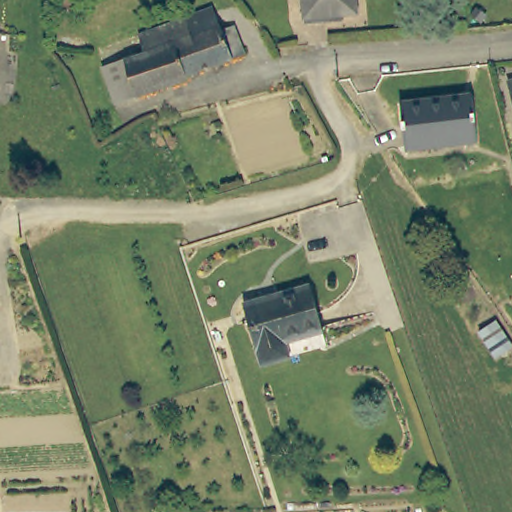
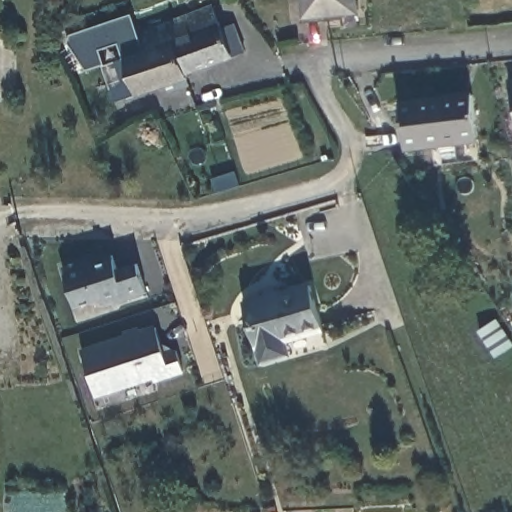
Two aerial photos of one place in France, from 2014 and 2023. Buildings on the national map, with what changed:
unchanged [(302,0),(354,0),(355,14),(303,17),(302,0)]
unchanged [(143,49),(138,30),(215,2),(222,26),(232,24),(241,54),(186,71),(187,78),(109,100),(100,62),(143,49)]
unchanged [(143,49),(100,62),(101,66),(86,70),(67,44),(71,35),(132,15),(138,30),(143,49)]
unchanged [(508,81),(506,76),(512,74),(512,96),(511,92),(508,81)]
unchanged [(434,96),(435,102),(469,96),(475,138),(403,147),(396,101),(434,96)]
new [(146,295),(107,307),(99,303),(75,310),(65,276),(62,267),(85,261),(112,254),(116,269),(138,264),(146,295)]
unchanged [(263,360),(258,345),(254,346),(240,302),(305,281),(320,325),(284,336),(289,350),(263,360)]
new [(155,328),(159,342),(176,352),(184,375),(156,384),(154,380),(95,398),(78,350),(155,328)]

